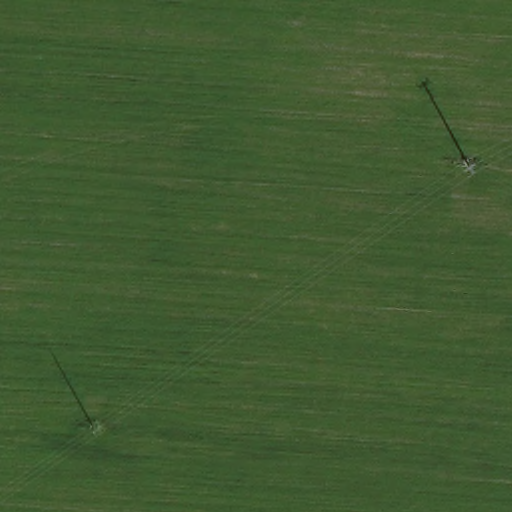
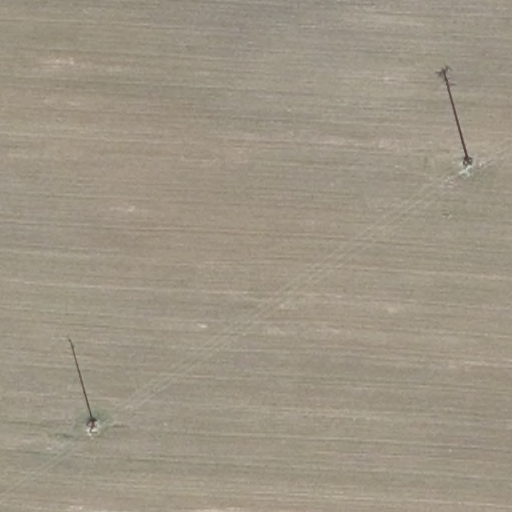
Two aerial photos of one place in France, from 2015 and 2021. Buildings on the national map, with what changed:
[]

